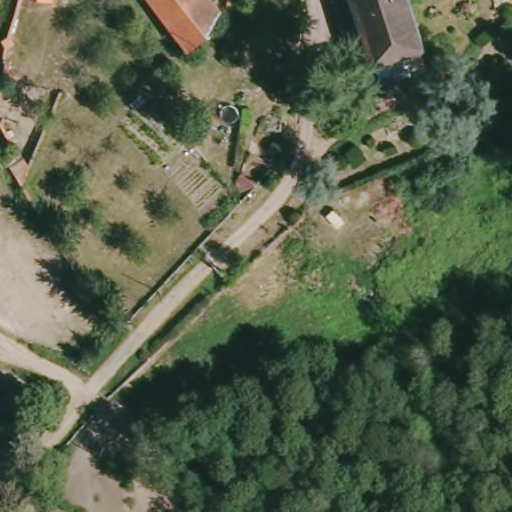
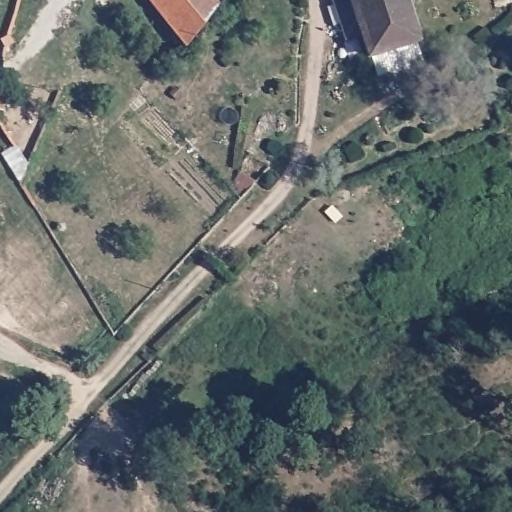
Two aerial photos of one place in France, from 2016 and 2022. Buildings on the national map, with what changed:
unchanged [(178,40),(146,0),(213,0),(219,8),(181,36),(178,40)]
unchanged [(346,0),(406,0),(417,36),(363,54),(346,0)]

